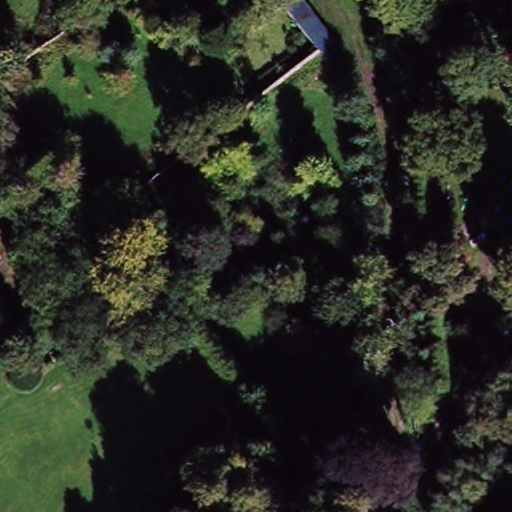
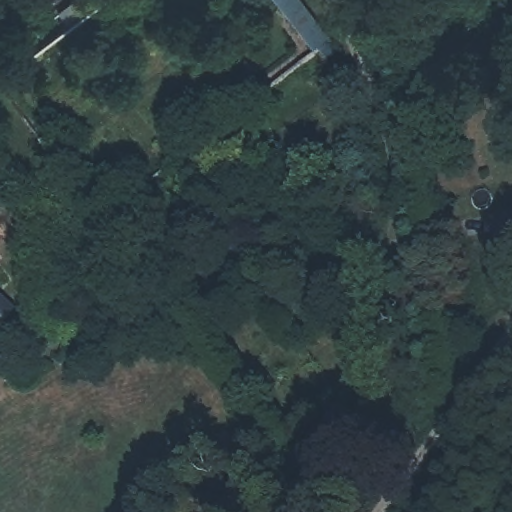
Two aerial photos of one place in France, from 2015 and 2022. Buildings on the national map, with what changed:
unchanged [(275,0),(299,0),(329,40),(313,52),(300,35),(275,0)]
unchanged [(315,86),(302,70),(317,57),(330,74),(315,86)]
unchanged [(0,328),(0,299),(15,312),(0,328)]

